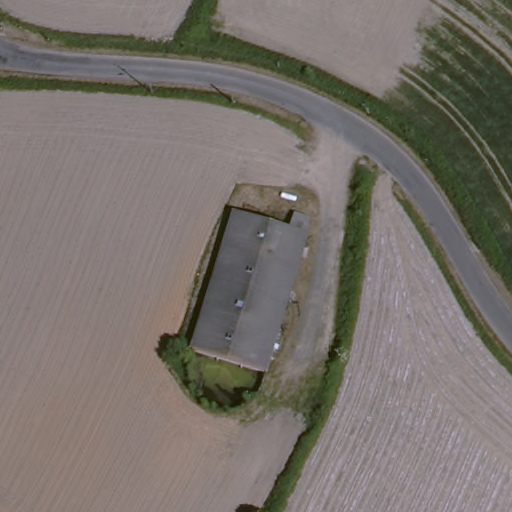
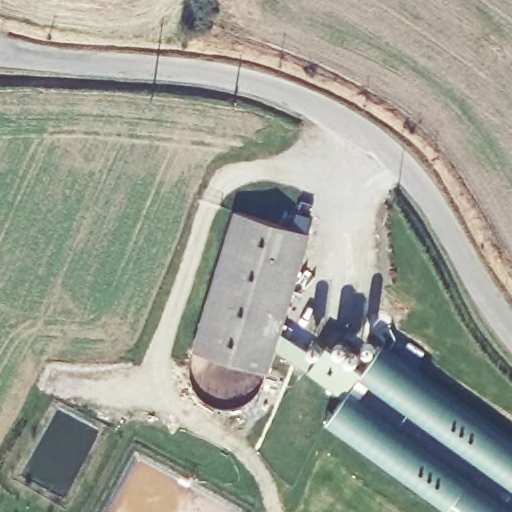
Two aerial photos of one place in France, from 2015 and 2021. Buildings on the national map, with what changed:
unchanged [(312,229),(274,368),(200,346),(239,207),(312,229)]
new [(344,398),(278,351),(283,334),(317,356),(325,347),(362,372),(382,346),(512,440),(512,512),(450,512),(328,424),(344,398)]

